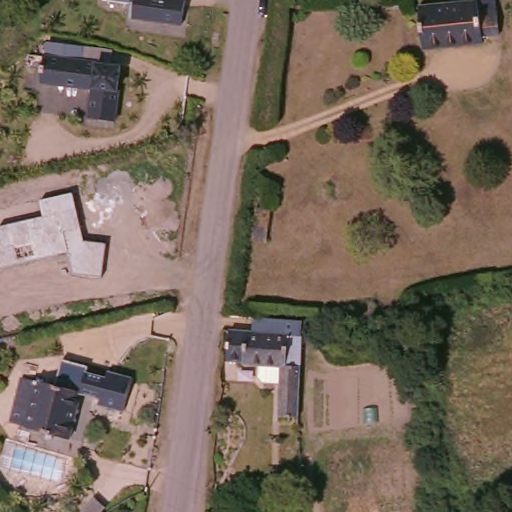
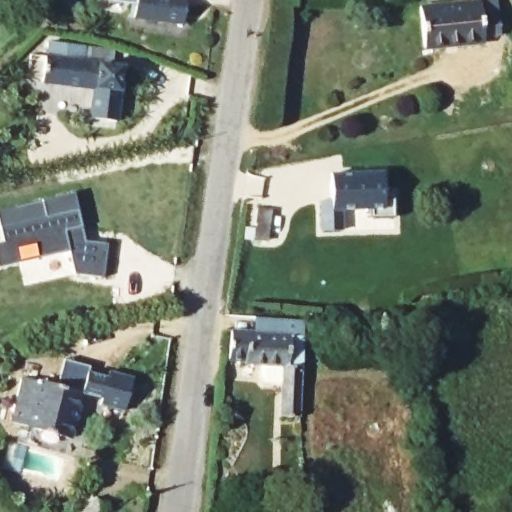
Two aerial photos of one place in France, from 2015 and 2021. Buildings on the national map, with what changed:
unchanged [(130,18),(132,0),(184,0),(182,25),(130,18)]
unchanged [(476,41),(476,49),(419,54),(416,12),(490,5),(492,39),(476,41)]
unchanged [(115,124),(86,121),(88,91),(41,88),(43,51),(120,60),(115,124)]
new [(321,199),(331,199),(331,174),(383,173),(383,194),(393,195),(393,215),(372,215),(373,209),(343,210),(342,231),(321,231),(321,199)]
unchanged [(0,267),(0,242),(1,242),(0,235),(0,226),(43,216),(40,199),(73,192),(85,240),(106,244),(102,276),(74,273),(69,251),(0,267)]
unchanged [(272,210),(266,243),(243,239),(246,229),(254,230),(258,208),(272,210)]
unchanged [(257,384),(258,372),(238,371),(238,367),(225,367),(227,339),(249,339),(249,319),(272,320),(274,320),(299,322),(299,339),(296,420),(280,420),(282,390),(263,389),(257,384)]
unchanged [(63,359),(88,367),(87,372),(106,376),(108,371),(132,377),(124,411),(99,405),(100,399),(79,393),(56,386),(63,359)]
unchanged [(9,418),(21,376),(79,393),(65,434),(9,418)]
unchanged [(88,503),(97,512),(79,512),(88,503)]

